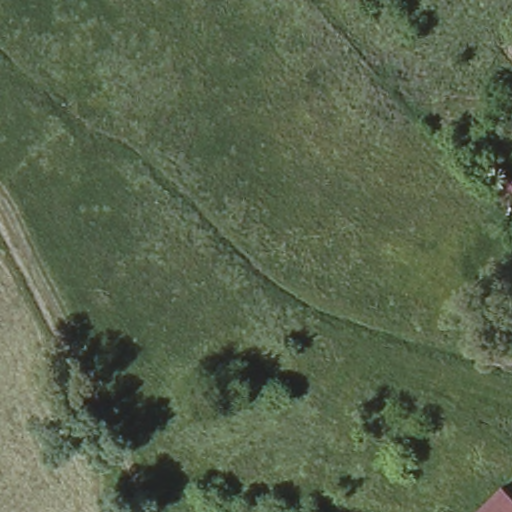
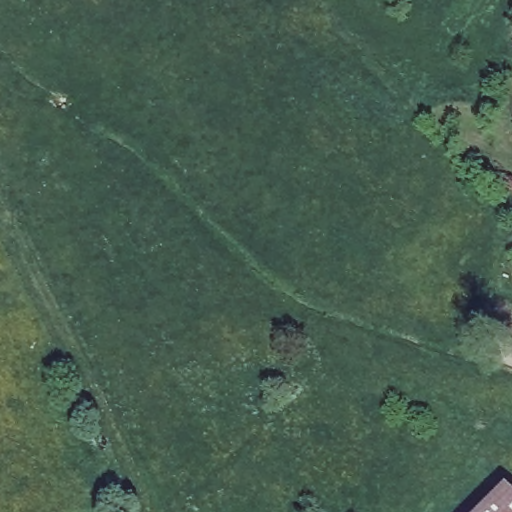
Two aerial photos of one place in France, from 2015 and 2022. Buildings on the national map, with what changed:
unchanged [(512,51),(512,56),(510,54),(512,51)]
unchanged [(512,512),(491,512),(507,496),(512,501),(512,512)]

